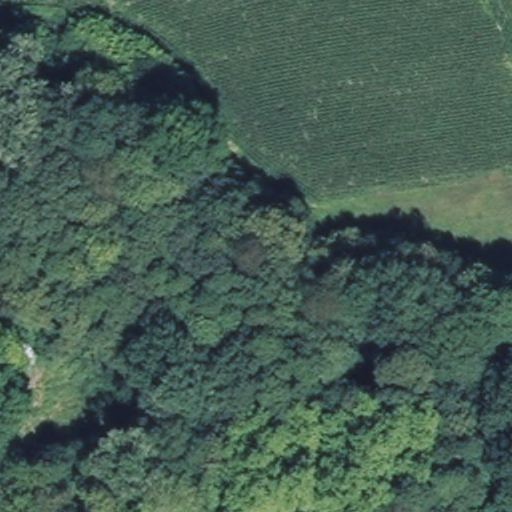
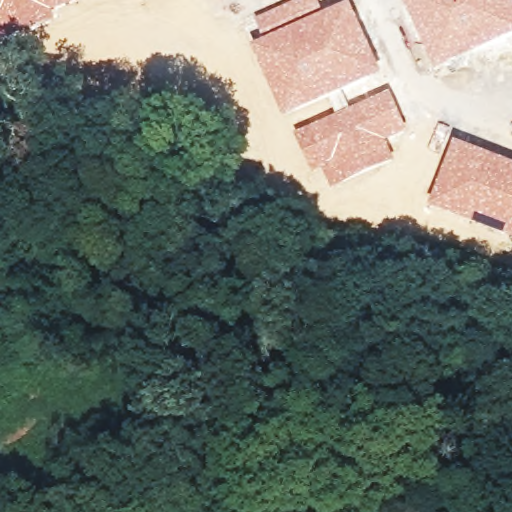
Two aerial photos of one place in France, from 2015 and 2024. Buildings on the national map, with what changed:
new [(53,15),(57,24),(0,49),(0,0),(80,0),(81,4),(53,15)]
new [(317,0),(323,13),(264,40),(255,19),(296,0),(317,0)]
new [(512,37),(435,71),(403,0),(511,0),(512,3),(512,37)]
new [(264,40),(323,13),(348,4),(381,75),(332,99),(284,119),(251,47),(264,40)]
new [(390,92),(407,132),(385,142),(395,162),(333,191),(325,171),(313,177),(295,136),(390,92)]
new [(483,152),(512,164),(512,239),(505,236),(507,230),(476,217),(473,225),(428,207),(453,143),(483,152)]

